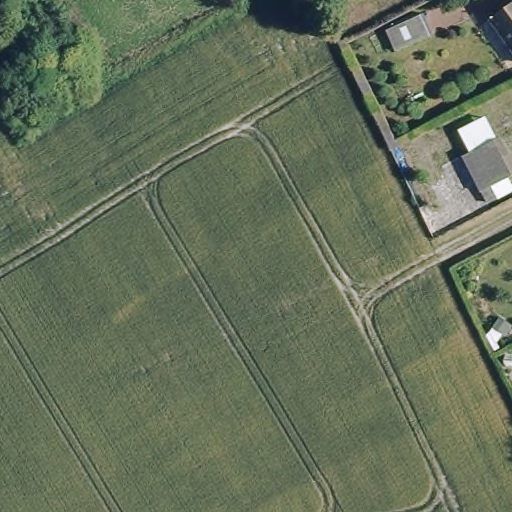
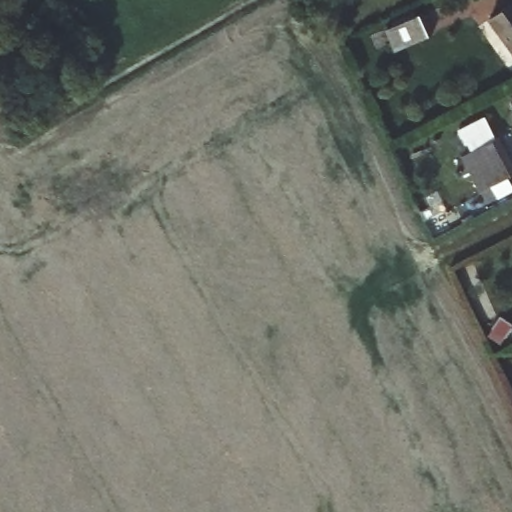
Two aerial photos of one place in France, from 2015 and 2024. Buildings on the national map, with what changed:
unchanged [(341,0),(355,0),(345,6),(341,0)]
unchanged [(488,19),(512,4),(512,55),(488,19)]
unchanged [(427,26),(394,43),(383,23),(418,5),(427,26)]
unchanged [(512,172),(512,173),(486,185),(490,194),(480,199),(458,154),(493,135),(512,172)]

